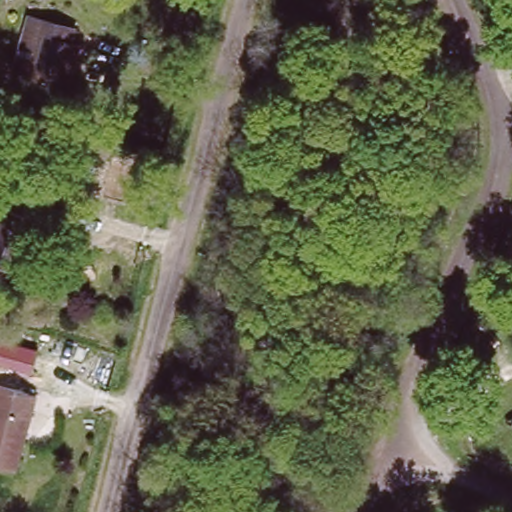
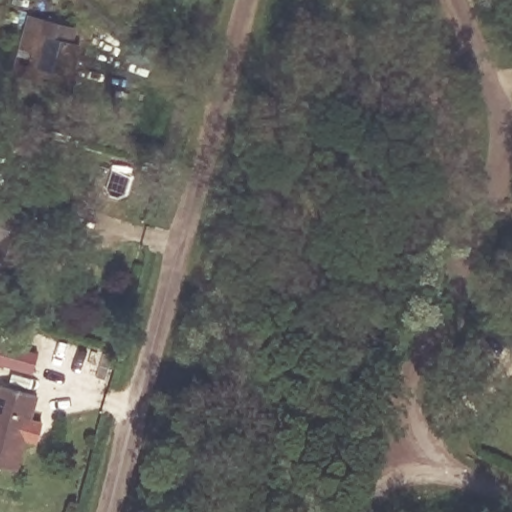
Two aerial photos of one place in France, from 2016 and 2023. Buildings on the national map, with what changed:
unchanged [(72,70),(68,83),(26,73),(13,69),(28,14),(41,17),(73,26),(70,38),(80,41),(72,70)]
unchanged [(25,274),(0,267),(0,233),(5,218),(38,228),(25,274)]
unchanged [(0,340),(38,352),(32,373),(0,364),(0,340)]
unchanged [(17,468),(0,464),(0,388),(37,397),(17,468)]

